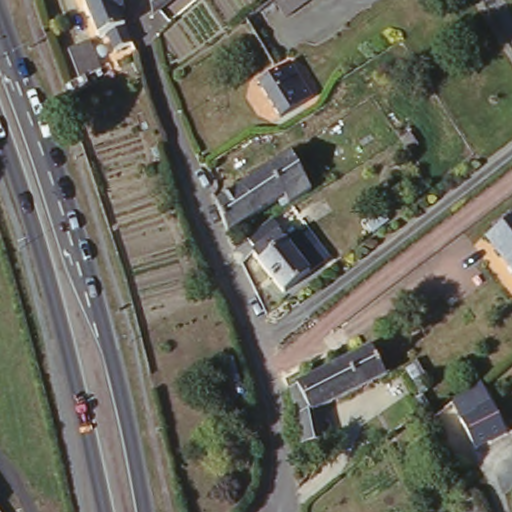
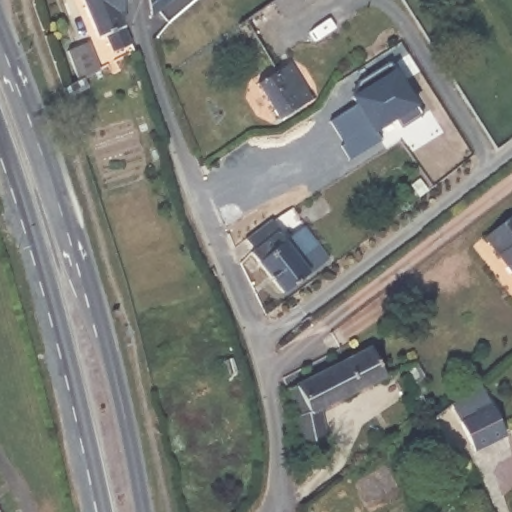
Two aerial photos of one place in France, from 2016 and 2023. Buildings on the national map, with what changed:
unchanged [(123,25),(129,41),(110,49),(101,30),(94,33),(80,0),(120,0),(123,25)]
unchanged [(150,16),(148,0),(169,0),(150,16)]
unchanged [(318,5),(291,21),(279,5),(287,0),(324,0),(318,5)]
unchanged [(74,52),(95,45),(104,69),(84,79),(74,52)]
unchanged [(289,60),(311,98),(280,115),(257,80),(289,60)]
new [(379,141),(354,157),(332,121),(357,105),(351,96),(397,67),(419,105),(374,133),(379,141)]
unchanged [(285,156),(307,189),(277,207),(273,202),(219,235),(208,205),(285,156)]
unchanged [(512,212),(512,276),(481,235),(512,212)]
unchanged [(276,228),(272,231),(305,270),(284,290),(249,250),(257,245),(247,231),(265,217),(271,223),(276,228)]
unchanged [(340,229),(346,235),(337,241),(331,235),(340,229)]
unchanged [(317,407),(324,437),(295,443),(292,411),(284,386),(368,344),(383,373),(317,407)]
unchanged [(418,358),(425,371),(422,378),(429,390),(423,395),(402,366),(418,358)]
unchanged [(484,386),(506,435),(475,452),(454,401),(484,386)]
unchanged [(0,510),(0,507),(1,509),(0,510)]

